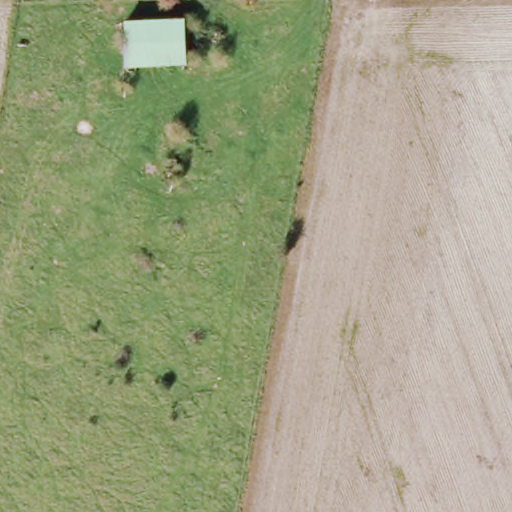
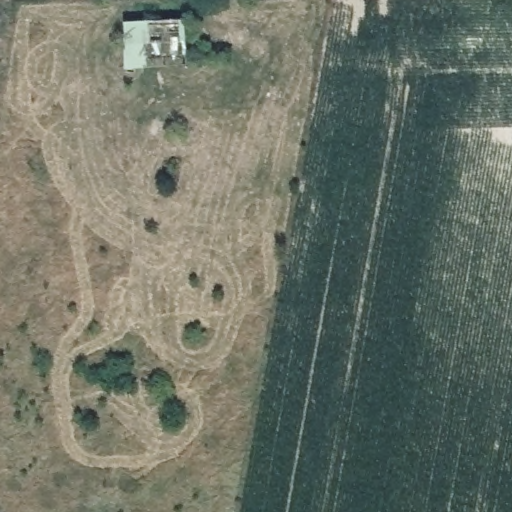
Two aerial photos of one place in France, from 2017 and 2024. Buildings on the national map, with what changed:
unchanged [(142,22),(189,18),(189,61),(144,59),(142,22)]

